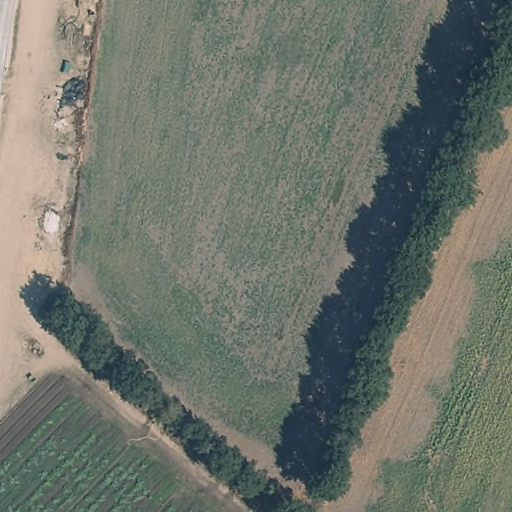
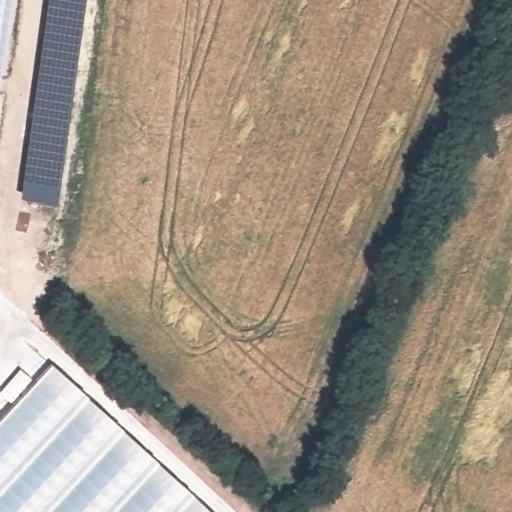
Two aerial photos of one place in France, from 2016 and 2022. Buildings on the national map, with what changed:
unchanged [(17,0),(0,120),(0,0),(17,0)]
new [(208,512),(0,512),(0,424),(53,367),(208,512)]

